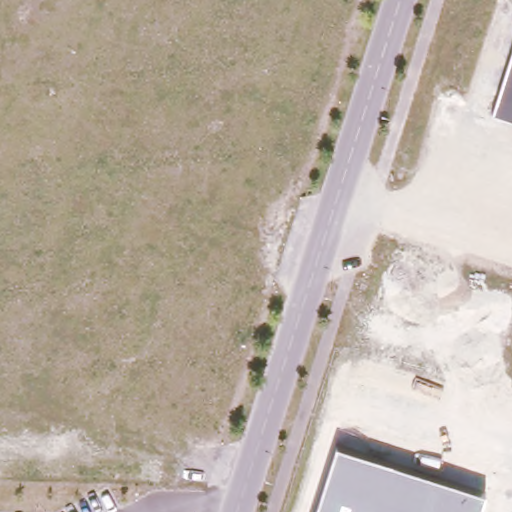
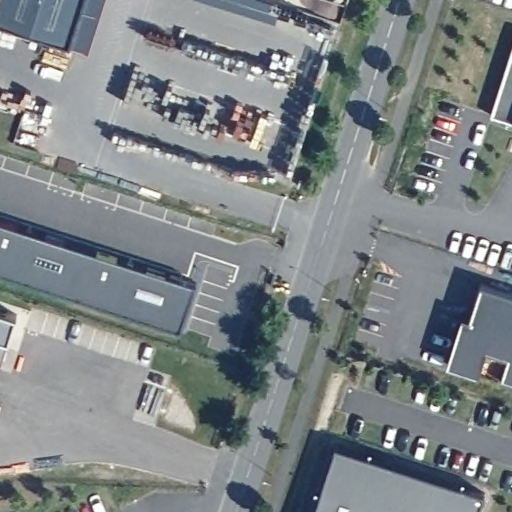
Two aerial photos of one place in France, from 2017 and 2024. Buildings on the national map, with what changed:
new [(90,49),(0,18),(0,0),(108,0),(90,49)]
new [(261,16),(212,0),(266,0),(261,16)]
unchanged [(492,115),(512,51),(512,120),(492,115)]
new [(180,327),(0,270),(0,221),(193,283),(180,327)]
new [(460,362),(486,278),(512,286),(512,379),(460,362)]
new [(7,339),(0,337),(0,309),(15,314),(7,339)]
unchanged [(483,492),(477,512),(314,512),(335,445),(483,492)]

